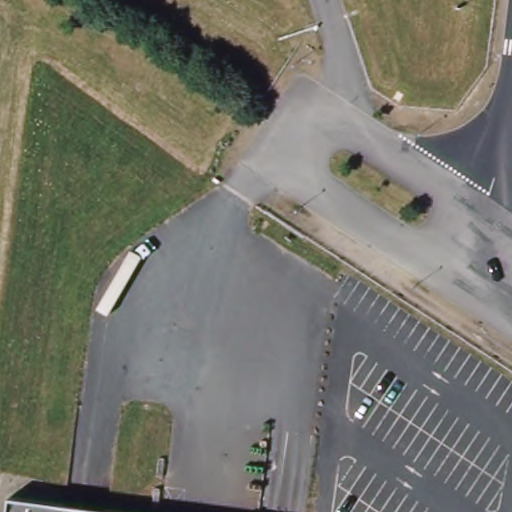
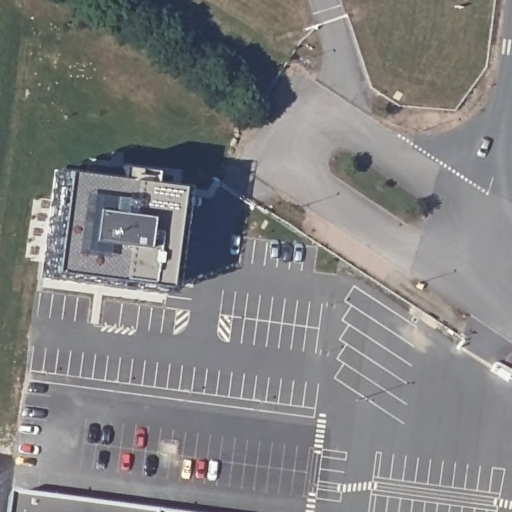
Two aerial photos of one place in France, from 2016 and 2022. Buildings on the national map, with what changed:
new [(46,273),(59,173),(108,181),(110,168),(145,173),(144,184),(171,189),(159,288),(46,273)]
unchanged [(67,501),(107,507),(142,512),(8,512),(10,494),(67,501)]

